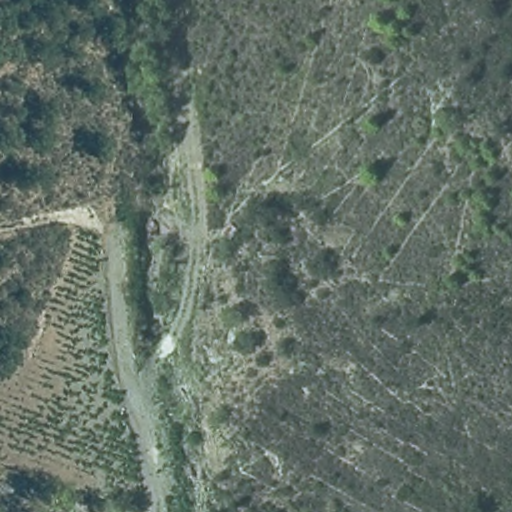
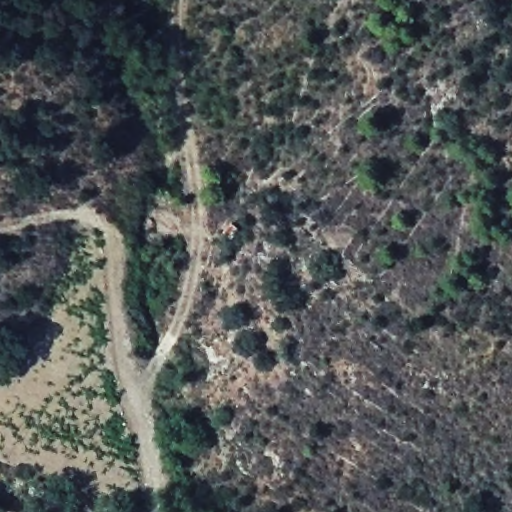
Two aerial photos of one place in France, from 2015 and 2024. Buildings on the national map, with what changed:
unchanged [(238,247),(225,240),(232,226),(247,235),(238,247)]

